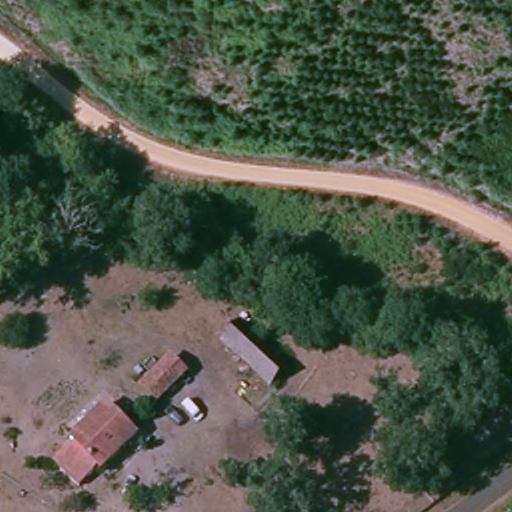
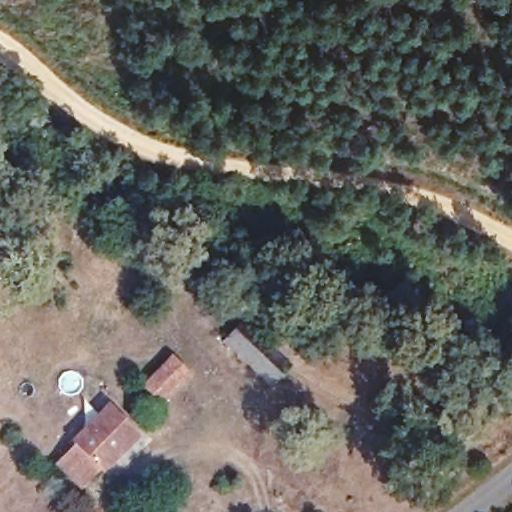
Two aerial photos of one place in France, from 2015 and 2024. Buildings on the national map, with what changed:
unchanged [(304,360),(286,385),(229,341),(249,316),(304,360)]
unchanged [(193,377),(170,402),(134,374),(155,346),(193,377)]
unchanged [(90,485),(61,466),(75,449),(70,445),(101,406),(135,433),(108,472),(103,469),(90,485)]

